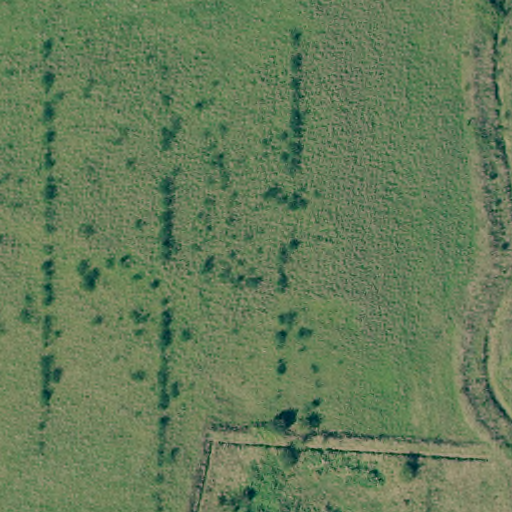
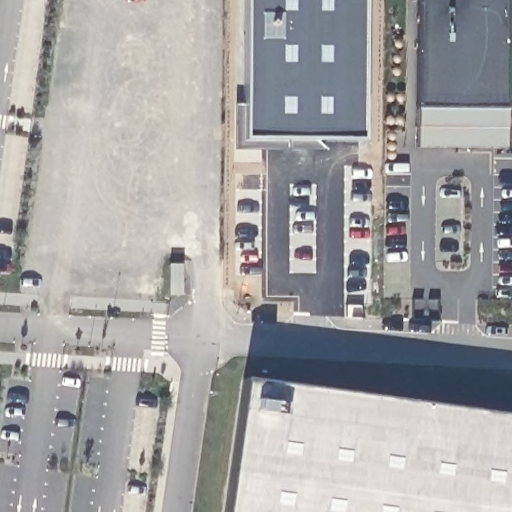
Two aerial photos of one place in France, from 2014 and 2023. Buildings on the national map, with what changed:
new [(504,107),(419,106),(420,0),(506,0),(504,107)]
new [(512,443),(512,512),(227,512),(244,381),(510,417),(507,442),(512,443)]

